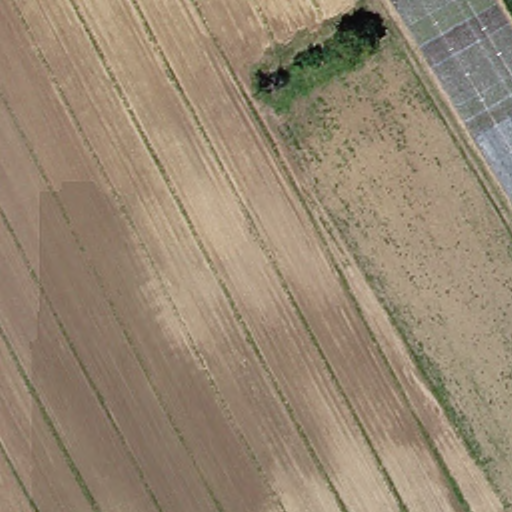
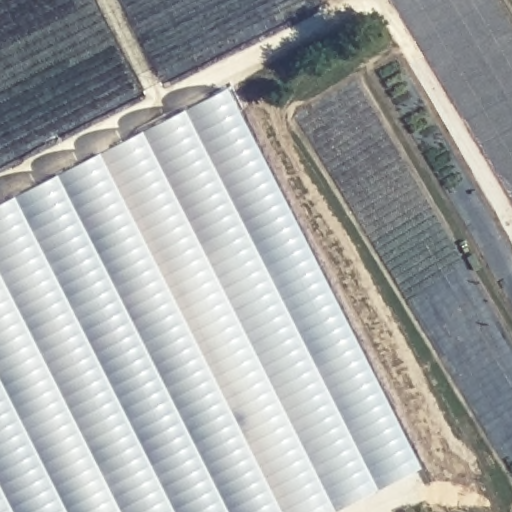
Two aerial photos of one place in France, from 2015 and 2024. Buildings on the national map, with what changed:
new [(0,512),(0,201),(220,88),(414,470),(330,512),(0,512)]

